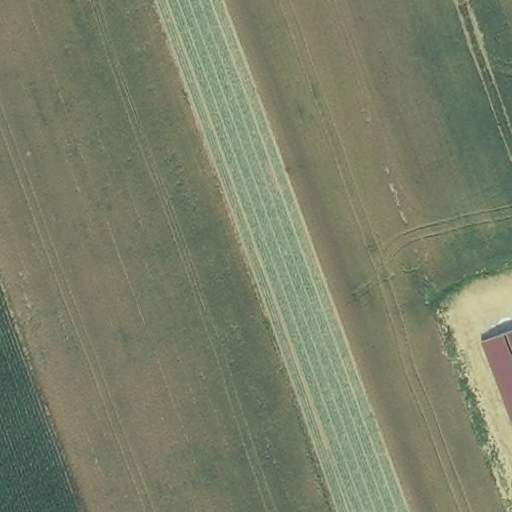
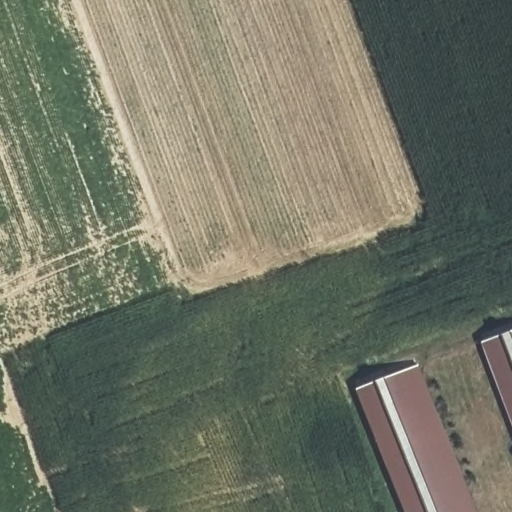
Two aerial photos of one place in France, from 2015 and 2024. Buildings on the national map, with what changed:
unchanged [(512,330),(512,420),(483,341),(512,330)]
new [(477,512),(406,512),(360,390),(418,368),(477,512)]

